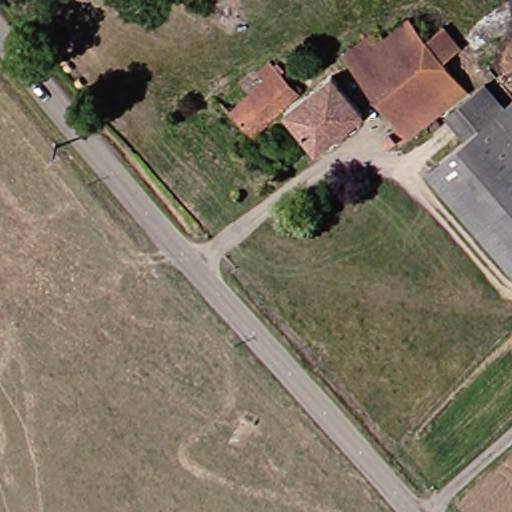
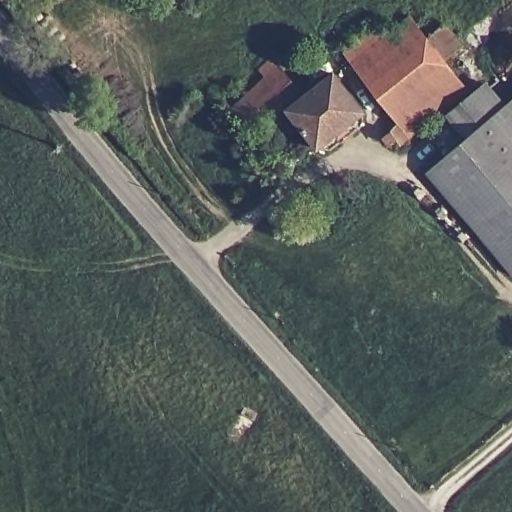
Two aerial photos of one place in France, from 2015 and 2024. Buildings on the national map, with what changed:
unchanged [(466,43),(453,60),(474,84),(434,119),(401,145),(390,130),(404,120),(346,48),(374,22),(386,36),(414,14),(429,33),(447,20),(466,43)]
unchanged [(259,69),(275,57),(284,69),(296,82),(300,88),(253,130),(231,105),(248,89),(264,76),(259,69)]
unchanged [(336,75),(367,116),(320,150),(290,108),(336,75)]
unchanged [(507,111),(512,117),(512,263),(433,174),(476,137),(458,117),(453,110),(493,77),(498,83),(512,101),(512,106),(507,111)]
unchanged [(507,111),(512,106),(512,117),(507,111)]

